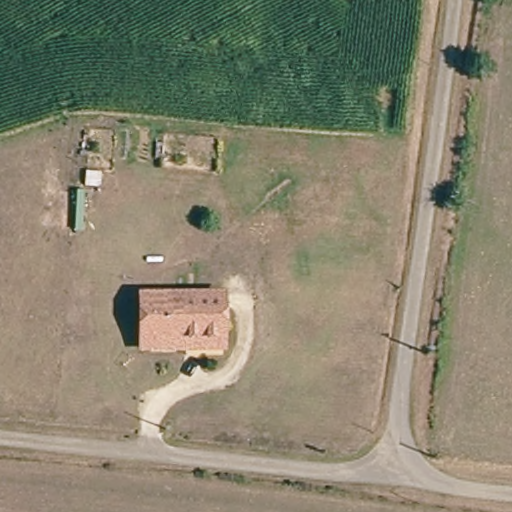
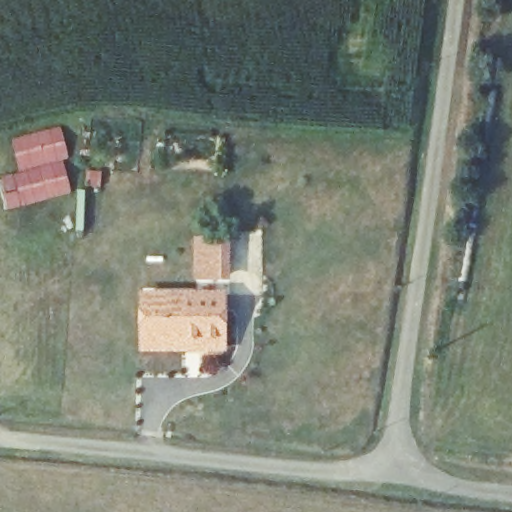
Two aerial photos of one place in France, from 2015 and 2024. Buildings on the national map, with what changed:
new [(60,125),(69,158),(63,159),(18,171),(11,139),(60,125)]
new [(63,159),(71,193),(6,210),(0,187),(0,176),(18,171),(63,159)]
new [(194,277),(194,236),(232,236),(231,280),(194,277)]
unchanged [(139,327),(141,286),(192,292),(224,295),(223,313),(220,352),(190,349),(138,345),(139,327)]

